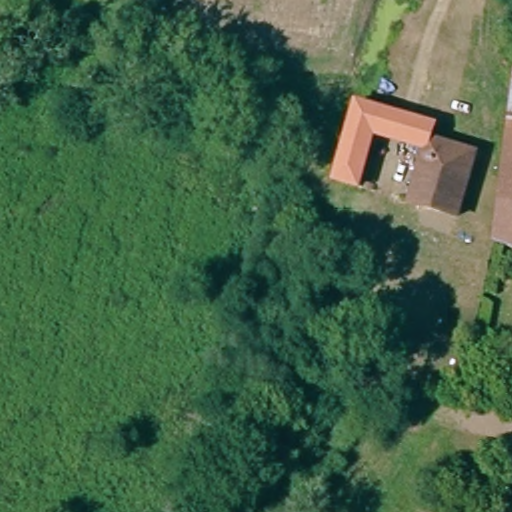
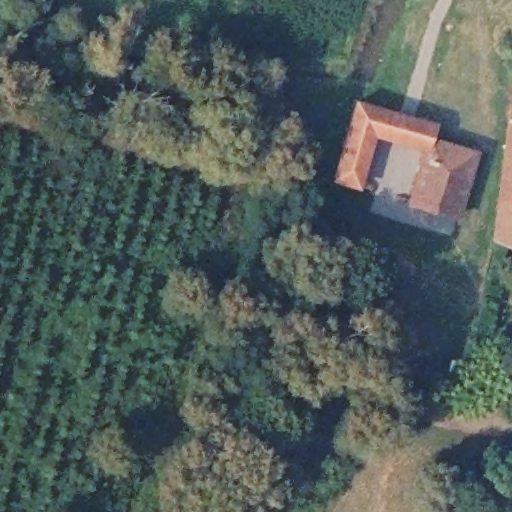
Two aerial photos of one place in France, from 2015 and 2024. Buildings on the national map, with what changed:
unchanged [(378,138),(365,188),(345,183),(348,165),(364,108),(442,126),(440,141),(481,152),(468,213),(400,196),(403,176),(410,145),(378,138)]
unchanged [(512,247),(500,242),(512,131),(512,247)]

